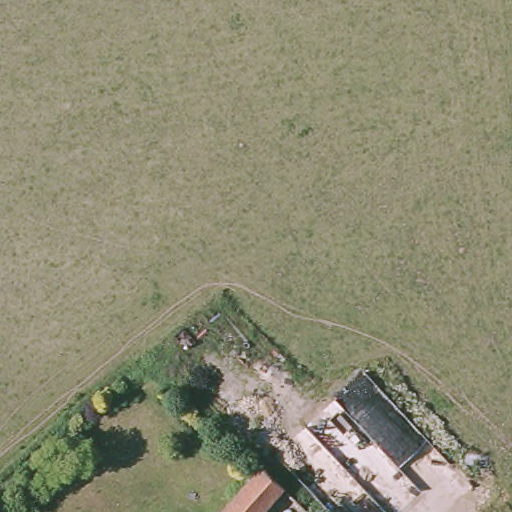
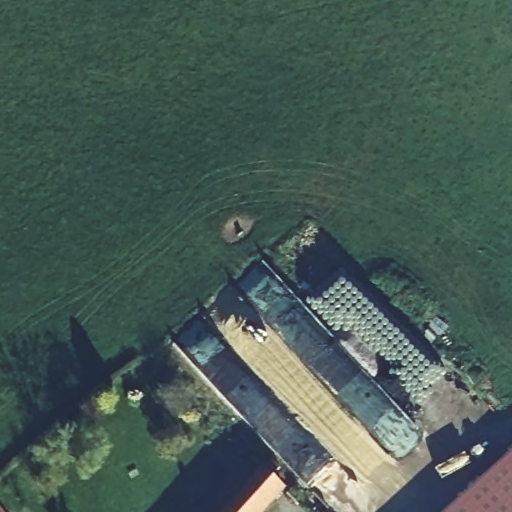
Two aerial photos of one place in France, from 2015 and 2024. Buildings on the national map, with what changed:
new [(512,451),(512,512),(444,512),(512,451)]
unchanged [(228,502),(250,473),(255,467),(276,486),(277,486),(256,512),(220,512),(228,502)]
unchanged [(0,511),(5,506),(12,512),(0,512),(0,511)]
unchanged [(302,512),(290,512),(294,506),(302,512)]

